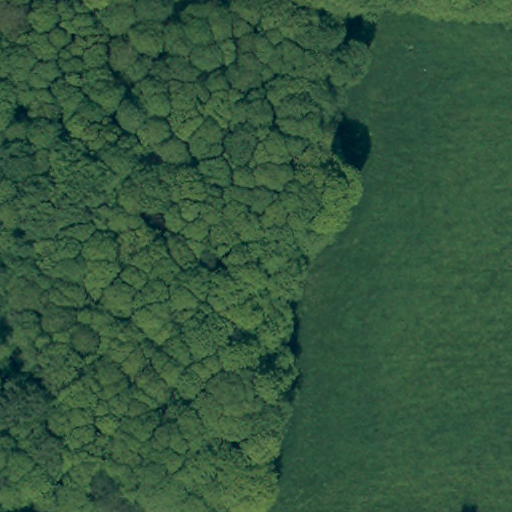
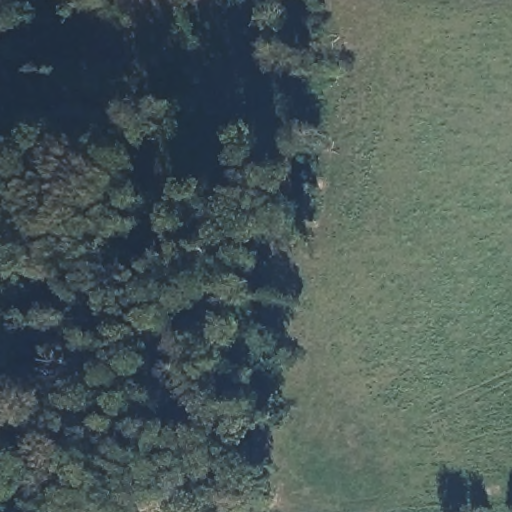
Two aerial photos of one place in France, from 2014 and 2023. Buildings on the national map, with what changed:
[]

